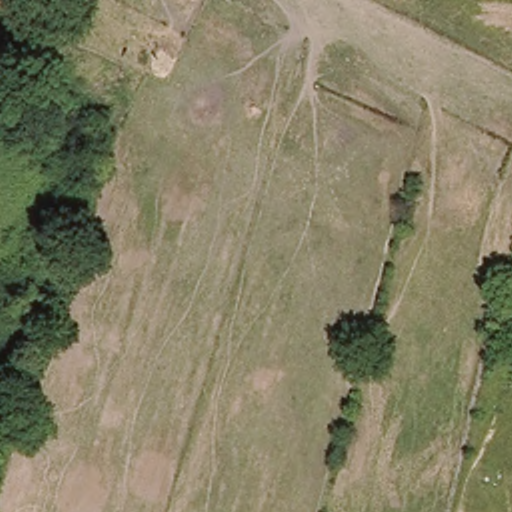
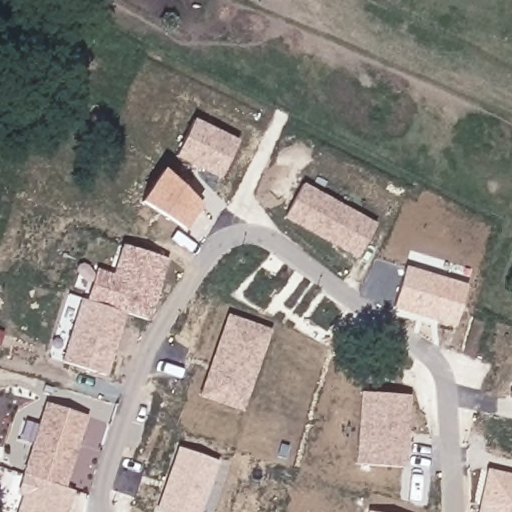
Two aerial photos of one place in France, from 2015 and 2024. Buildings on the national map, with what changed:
new [(174,158),(192,118),(237,142),(218,179),(174,158)]
new [(200,205),(183,231),(140,203),(161,169),(200,205)]
new [(376,223),(357,259),(283,219),(302,184),(376,223)]
new [(59,360),(79,299),(85,301),(95,269),(111,274),(121,244),(167,259),(148,320),(126,314),(106,375),(59,360)]
new [(469,286),(456,327),(393,308),(403,266),(469,286)]
new [(226,314),(270,330),(242,411),(198,397),(226,314)]
new [(512,383),(512,400),(507,398),(512,383)]
new [(410,395),(405,467),(355,465),(360,392),(410,395)]
new [(44,403),(87,417),(64,488),(74,491),(67,512),(14,512),(19,497),(15,495),(44,403)]
new [(201,512),(155,512),(178,447),(218,462),(201,512)]
new [(512,474),(512,512),(475,512),(485,468),(512,474)]

